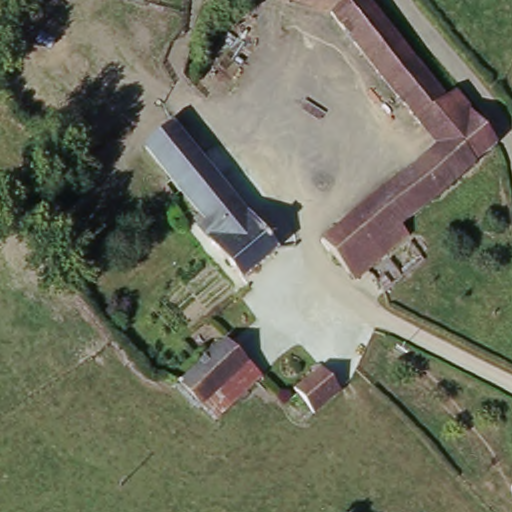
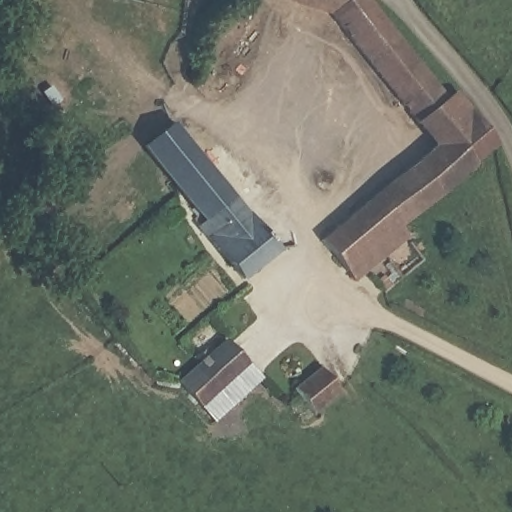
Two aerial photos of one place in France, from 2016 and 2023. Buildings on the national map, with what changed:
unchanged [(295,10),(260,0),(297,0),(295,10)]
unchanged [(295,10),(297,0),(343,0),(326,20),(295,10)]
unchanged [(444,91),(417,120),(326,20),(343,0),(359,0),(444,91)]
unchanged [(417,120),(444,91),(447,88),(493,144),(465,168),(437,141),(417,120)]
unchanged [(283,248),(242,279),(209,235),(217,232),(146,142),(177,122),(283,248)]
unchanged [(361,281),(329,246),(437,141),(465,168),(401,232),(406,238),(361,281)]
unchanged [(261,381),(216,422),(178,384),(222,344),(261,381)]
unchanged [(327,369),(346,393),(306,425),(286,402),(327,369)]

